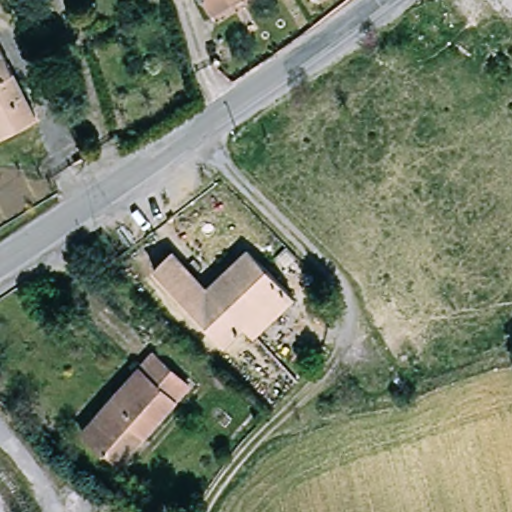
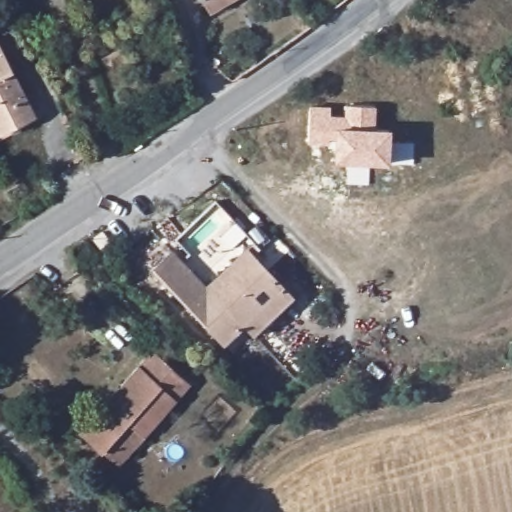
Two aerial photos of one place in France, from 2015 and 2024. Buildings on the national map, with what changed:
unchanged [(206,2),(205,0),(210,0),(206,2)]
unchanged [(0,133),(0,52),(32,117),(0,133)]
new [(330,105),(330,114),(345,114),(345,104),(375,105),(375,127),(391,128),(389,164),(333,160),(335,137),(329,139),(329,143),(308,142),(310,105),(330,105)]
demolished [(121,231),(115,236),(110,230),(117,226),(121,231)]
unchanged [(255,338),(243,325),(230,336),(223,343),(168,282),(155,270),(175,252),(207,286),(252,248),(287,289),(298,301),(255,338)]
unchanged [(100,455),(80,435),(150,355),(187,387),(142,436),(112,467),(100,455)]

